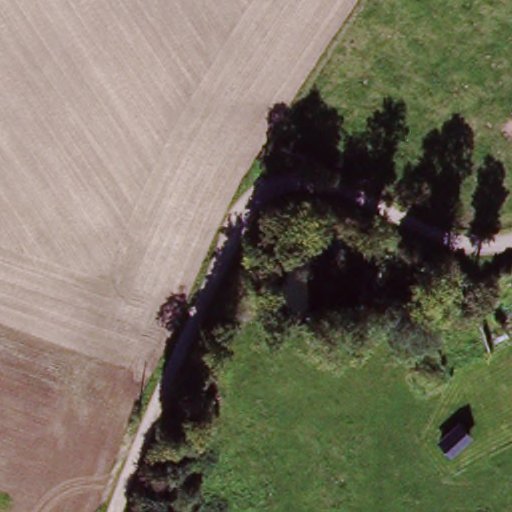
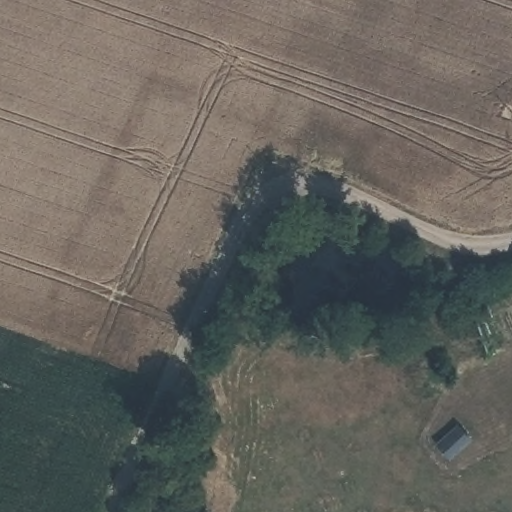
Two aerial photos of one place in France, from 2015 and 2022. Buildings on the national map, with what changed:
unchanged [(466,421),(474,431),(454,446),(446,436),(466,421)]

